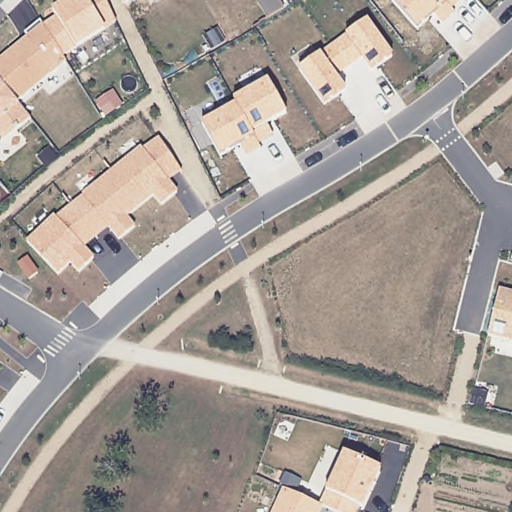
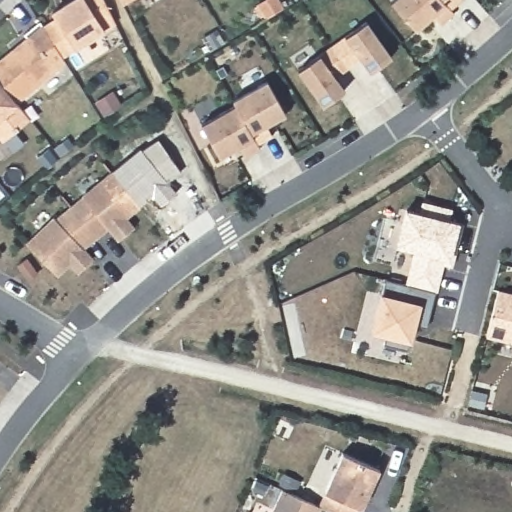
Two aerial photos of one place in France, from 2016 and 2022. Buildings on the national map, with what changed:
unchanged [(104,0),(116,25),(64,57),(42,27),(76,0),(104,0)]
unchanged [(118,0),(130,0),(120,5),(118,0)]
unchanged [(443,22),(436,15),(418,27),(394,0),(446,0),(456,11),(443,22)]
unchanged [(368,20),(394,55),(371,71),(361,57),(337,77),(346,89),(323,104),(299,70),(368,20)]
unchanged [(0,59),(42,27),(64,57),(68,62),(18,102),(0,80),(0,59)]
unchanged [(2,142),(0,139),(0,80),(31,119),(2,142)]
unchanged [(201,123),(235,105),(232,101),(233,101),(268,80),(289,114),(253,132),(263,147),(247,156),(241,145),(222,156),(201,123)]
unchanged [(53,214),(55,216),(140,145),(143,148),(159,137),(183,171),(170,180),(178,187),(160,204),(153,197),(129,217),(136,225),(119,239),(109,228),(86,247),(94,256),(79,272),(70,264),(60,273),(28,240),(53,214)]
new [(384,334),(370,330),(379,290),(382,291),(386,277),(404,281),(411,249),(395,245),(404,205),(418,209),(421,199),(454,207),(450,217),(463,220),(452,262),(443,261),(425,327),(417,324),(413,342),(409,341),(408,348),(383,343),(384,334)]
unchanged [(486,336),(497,289),(512,294),(512,341),(486,336)]
unchanged [(383,466),(364,507),(359,505),(356,512),(337,512),(324,507),(322,512),(272,512),(283,491),(319,502),(344,451),(383,466)]

